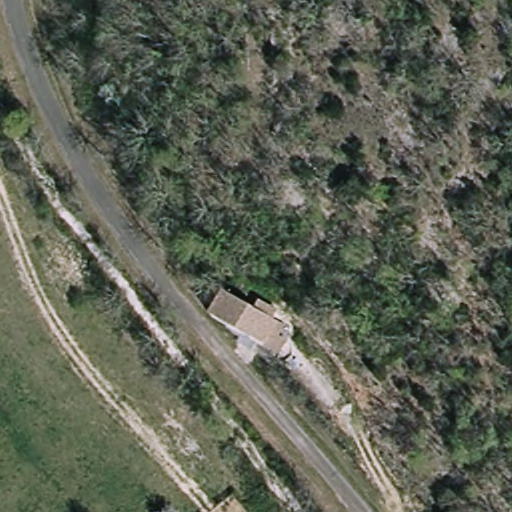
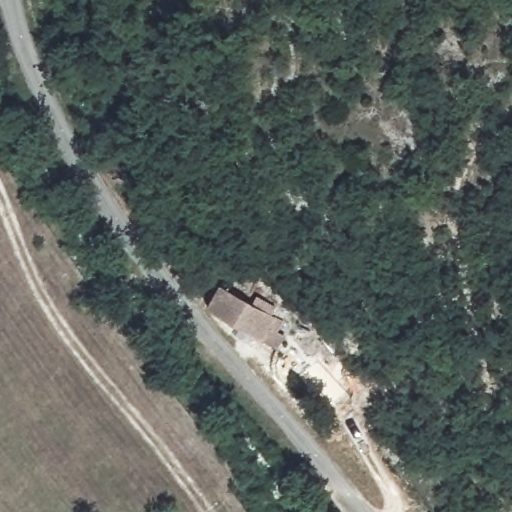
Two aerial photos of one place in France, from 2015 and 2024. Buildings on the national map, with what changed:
unchanged [(250,348),(204,314),(224,288),(270,322),(250,348)]

